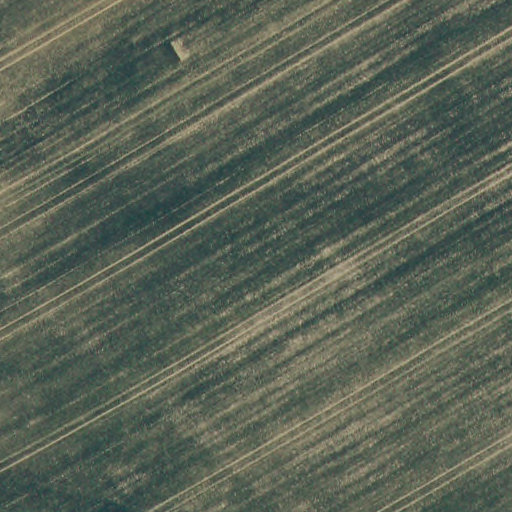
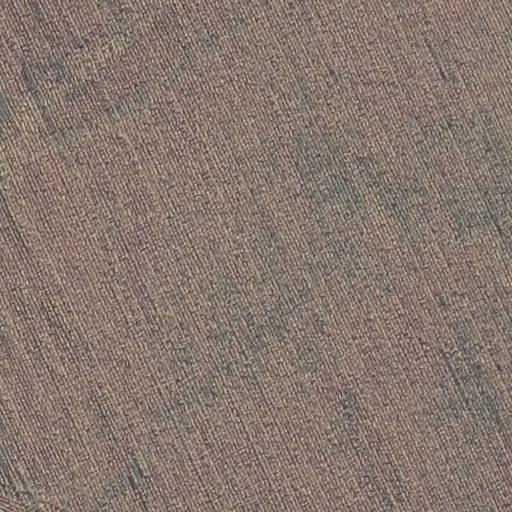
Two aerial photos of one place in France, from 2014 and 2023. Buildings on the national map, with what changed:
[]

